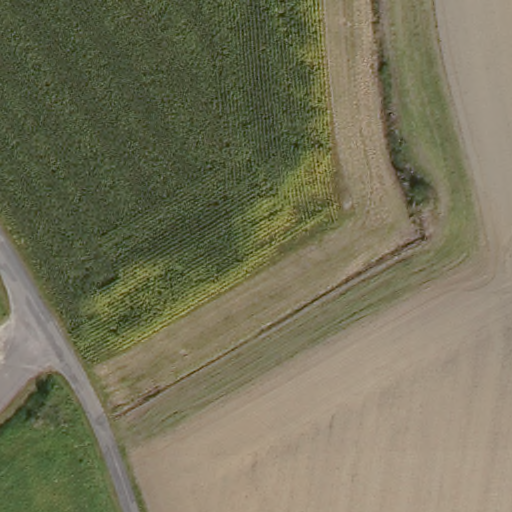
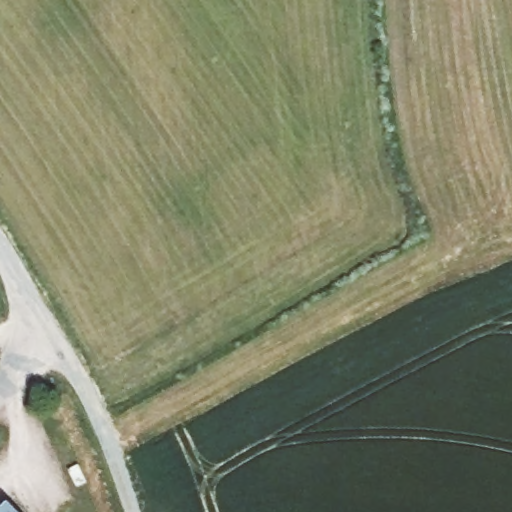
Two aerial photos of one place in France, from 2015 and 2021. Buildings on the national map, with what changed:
new [(19,512),(0,512),(0,507),(8,500),(19,512)]

